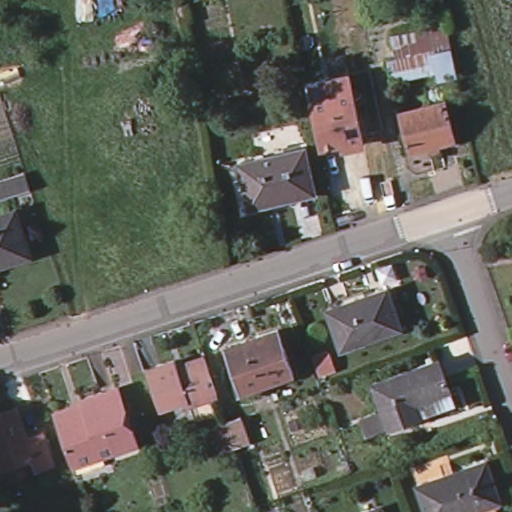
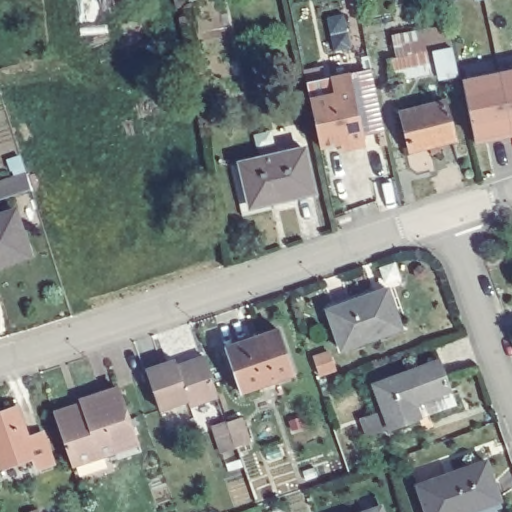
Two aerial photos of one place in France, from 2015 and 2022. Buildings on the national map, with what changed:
unchanged [(387,62),(397,60),(393,41),(450,31),(453,49),(458,74),(438,78),(437,73),(392,82),(387,62)]
new [(464,80),(512,70),(512,132),(474,139),(464,80)]
unchanged [(306,83),(352,72),(366,141),(345,146),(343,140),(320,146),(306,83)]
unchanged [(407,151),(400,115),(445,105),(452,142),(407,151)]
unchanged [(252,215),(240,165),(251,163),(315,149),(325,190),(283,199),(285,209),(252,215)]
unchanged [(0,269),(0,220),(15,216),(28,260),(0,269)]
unchanged [(352,349),(337,312),(386,294),(400,331),(352,349)]
unchanged [(244,390),(232,349),(287,332),(300,373),(244,390)]
unchanged [(417,416),(388,428),(370,383),(436,357),(447,387),(453,401),(417,416)]
unchanged [(193,409),(192,403),(160,412),(147,375),(177,364),(178,370),(202,361),(208,359),(212,368),(222,399),(193,409)]
unchanged [(118,452),(77,467),(60,421),(88,411),(85,403),(122,390),(142,443),(118,452)]
unchanged [(35,462),(3,472),(0,463),(0,418),(17,412),(28,439),(42,434),(53,465),(38,470),(35,462)]
unchanged [(213,446),(209,434),(225,429),(240,424),(248,451),(235,455),(218,461),(213,446)]
unchanged [(427,512),(420,490),(487,465),(501,503),(475,512),(427,512)]
unchanged [(383,512),(380,512),(383,511),(383,512)]

